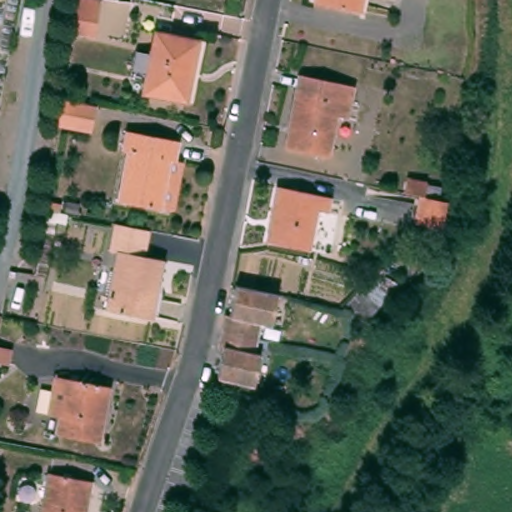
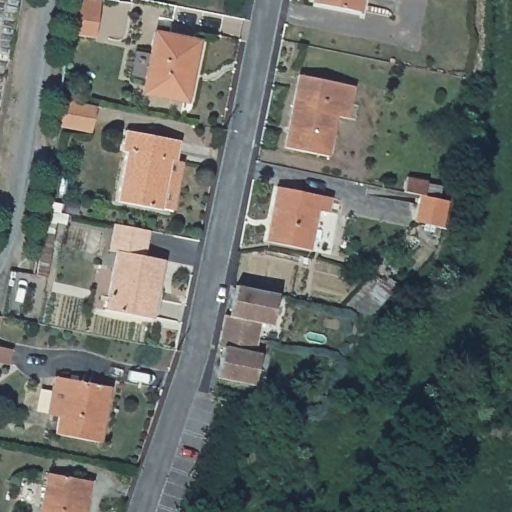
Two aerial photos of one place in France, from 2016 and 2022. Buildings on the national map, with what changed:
unchanged [(71,35),(76,0),(103,0),(97,39),(71,35)]
unchanged [(315,2),(316,0),(364,0),(363,9),(315,2)]
unchanged [(195,39),(185,100),(140,94),(150,31),(195,39)]
unchanged [(349,82),(340,136),(330,135),(326,157),(282,151),(295,75),(349,82)]
unchanged [(99,103),(93,131),(56,125),(64,96),(99,103)]
unchanged [(122,151),(125,132),(178,140),(175,160),(170,159),(161,209),(119,202),(127,152),(122,151)]
unchanged [(443,220),(416,217),(420,191),(407,189),(410,175),(430,178),(426,192),(453,196),(443,220)]
unchanged [(327,197),(325,211),(313,210),(306,251),(262,245),(271,190),(327,197)]
unchanged [(162,258),(151,315),(105,307),(118,250),(162,258)]
unchanged [(215,346),(218,330),(220,314),(225,315),(230,284),(273,290),(267,323),(257,321),(254,336),(251,351),(258,352),(253,384),(215,377),(220,346),(215,346)]
unchanged [(0,339),(0,312),(4,312),(0,339)]
unchanged [(15,360),(0,358),(0,343),(16,344),(15,360)]
unchanged [(105,387),(95,444),(51,436),(55,419),(44,417),(48,394),(51,377),(105,387)]
unchanged [(87,478),(82,512),(37,512),(45,470),(87,478)]

